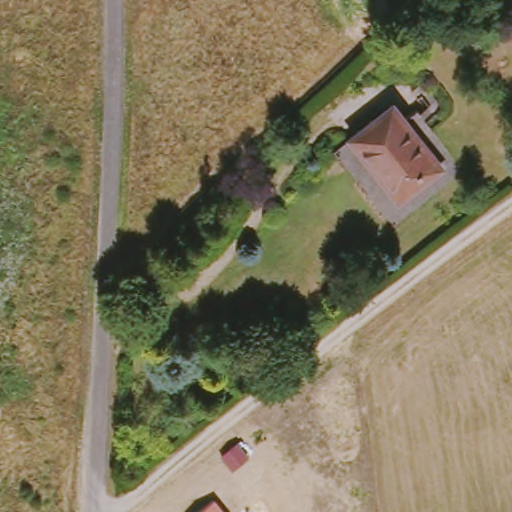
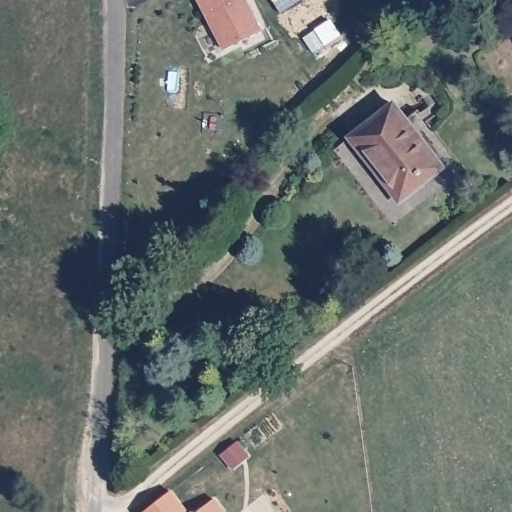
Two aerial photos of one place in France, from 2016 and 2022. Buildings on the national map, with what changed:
new [(261,31),(223,50),(197,0),(246,0),(261,31)]
unchanged [(352,144),(394,109),(443,169),(402,204),(352,144)]
unchanged [(195,512),(214,496),(228,512),(195,512)]

